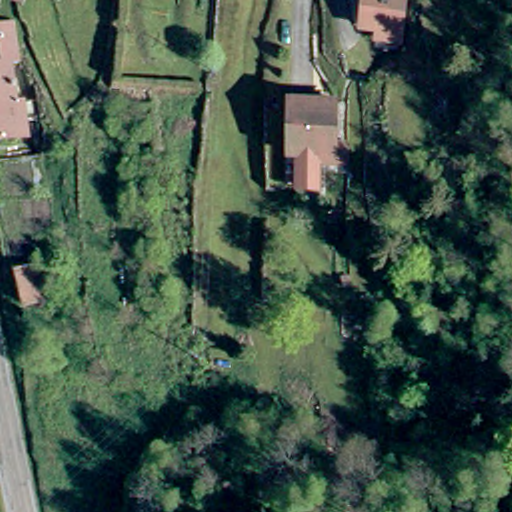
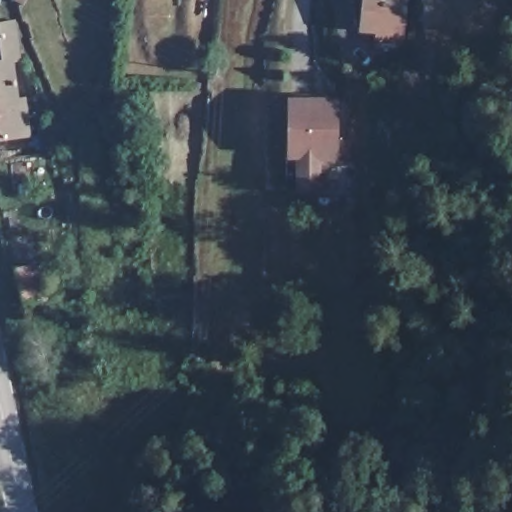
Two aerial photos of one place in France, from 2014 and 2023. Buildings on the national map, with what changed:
unchanged [(384,31),(365,30),(368,0),(407,0),(404,33),(402,45),(382,42),(384,31)]
unchanged [(0,138),(0,13),(1,12),(2,24),(19,20),(25,59),(14,60),(23,135),(0,138)]
unchanged [(320,160),(320,185),(300,184),(300,160),(295,160),(295,124),(292,124),(292,97),(337,97),(337,141),(348,141),(348,160),(320,160)]
unchanged [(23,301),(15,268),(35,262),(43,296),(23,301)]

